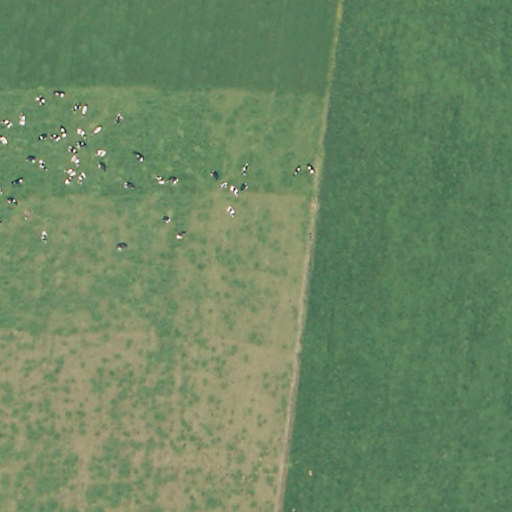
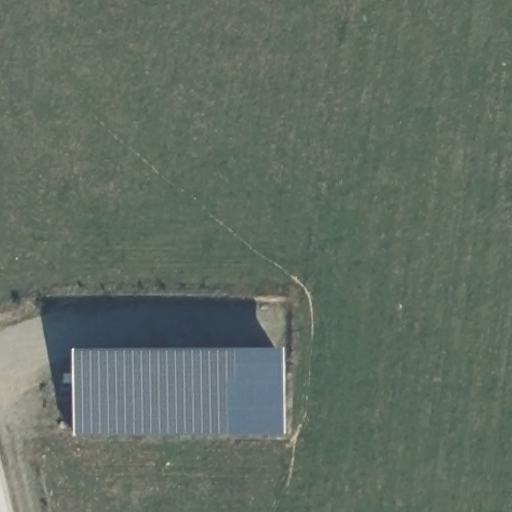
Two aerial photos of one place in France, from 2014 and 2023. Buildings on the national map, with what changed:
new [(284,436),(74,437),(72,350),(284,349),(284,436)]
new [(0,512),(0,479),(8,512),(0,512)]

